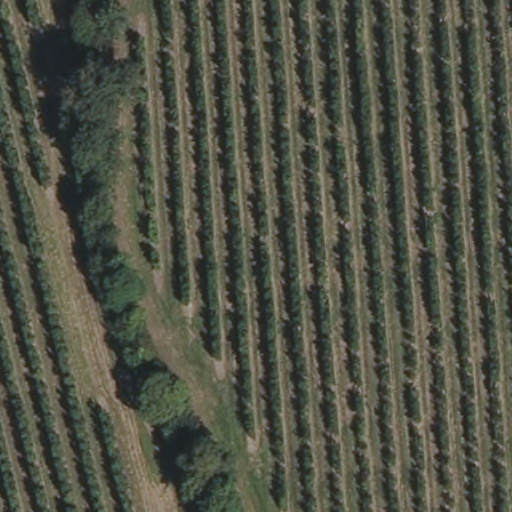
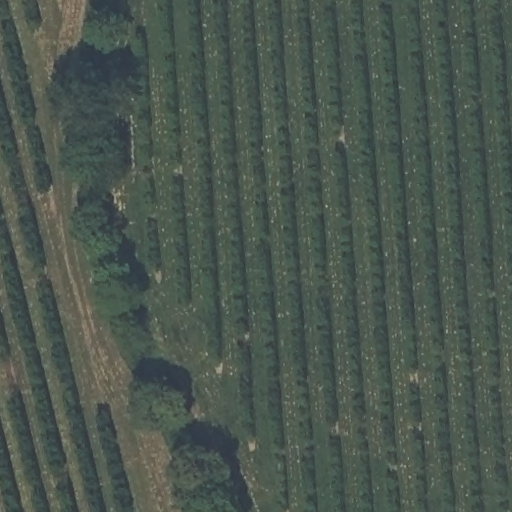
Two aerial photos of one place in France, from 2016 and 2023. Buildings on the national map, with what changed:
[]

